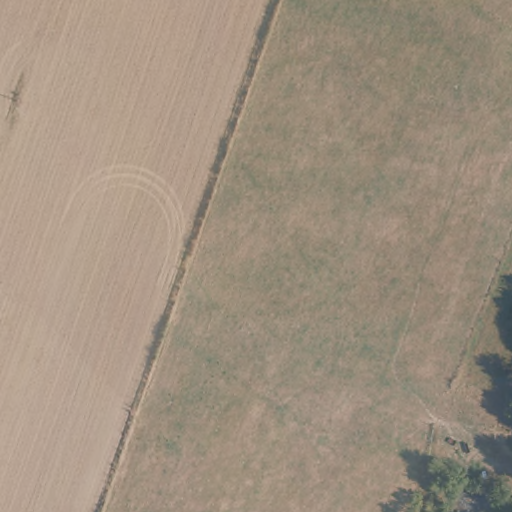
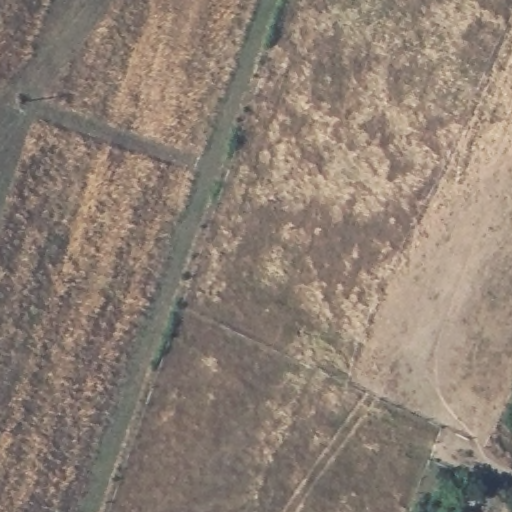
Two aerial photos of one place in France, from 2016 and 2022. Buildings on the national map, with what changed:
unchanged [(497,512),(501,502),(512,507),(512,512),(497,512)]

